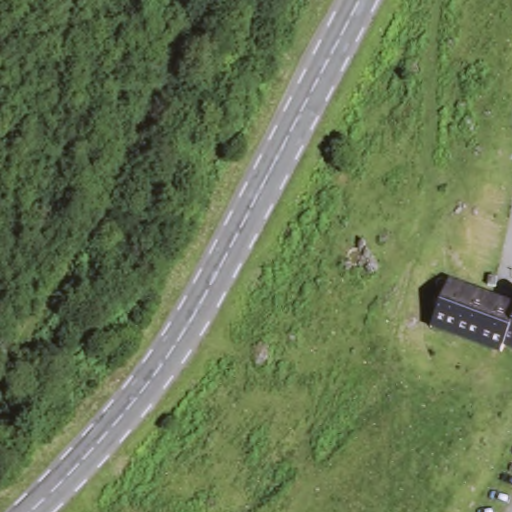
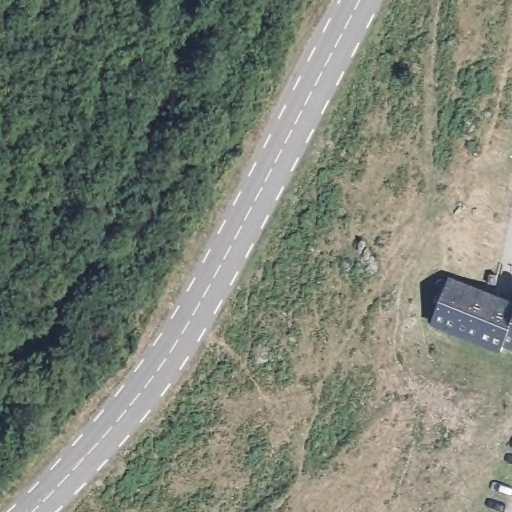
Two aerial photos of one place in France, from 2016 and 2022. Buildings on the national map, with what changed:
unchanged [(497,348),(427,318),(452,261),(512,287),(512,344),(501,339),(497,348)]

